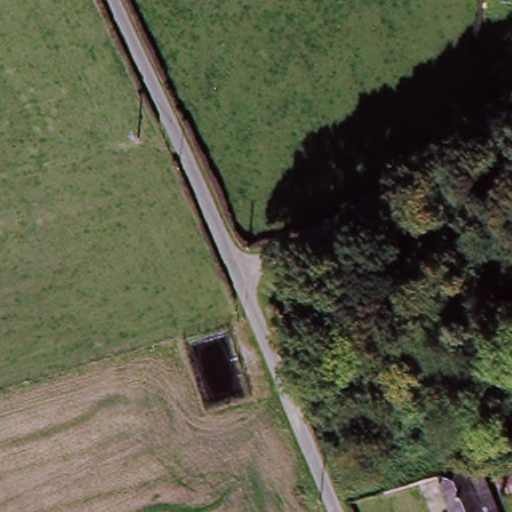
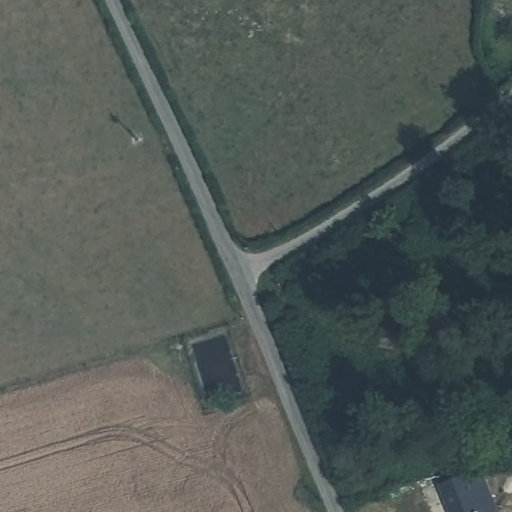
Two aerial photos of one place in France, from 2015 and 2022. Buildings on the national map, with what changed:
unchanged [(512,466),(512,495),(502,497),(494,471),(512,466)]
unchanged [(448,512),(438,487),(444,475),(458,470),(464,475),(481,469),(498,512),(448,512)]

